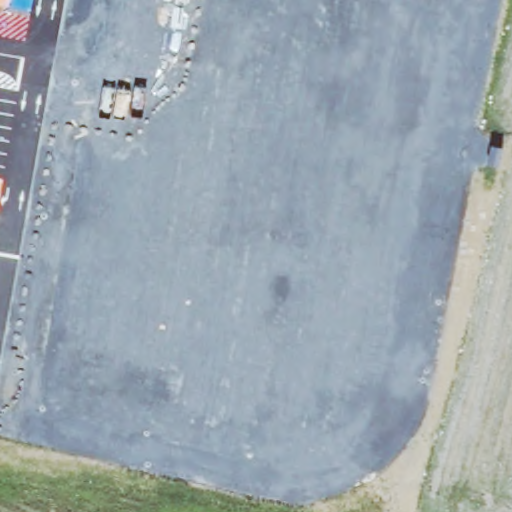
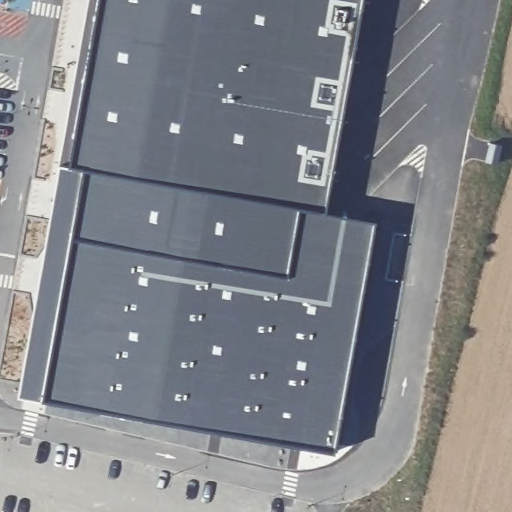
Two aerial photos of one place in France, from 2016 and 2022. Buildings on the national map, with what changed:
new [(66,168),(55,166),(88,0),(97,0),(64,166),(78,169),(33,398),(21,396),(66,168)]
new [(97,0),(364,0),(322,215),(78,169),(64,166),(97,0)]
new [(33,398),(78,169),(322,215),(372,225),(327,457),(33,400),(33,398)]

